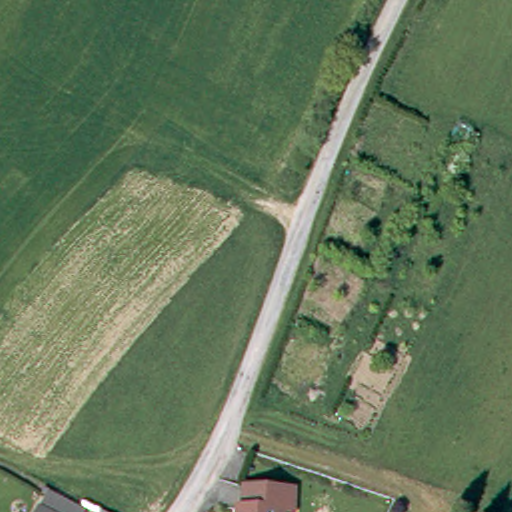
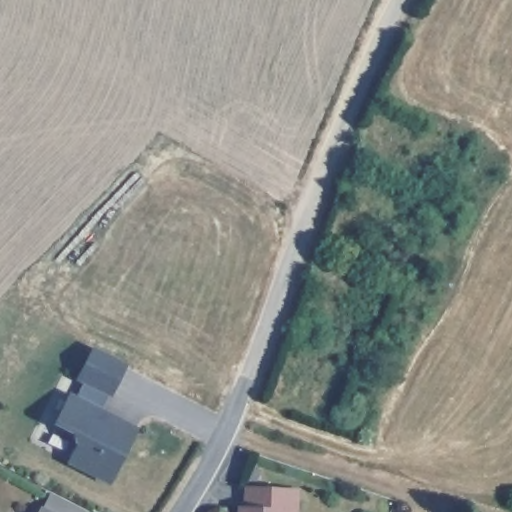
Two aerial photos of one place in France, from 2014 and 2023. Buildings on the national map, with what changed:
new [(128,365),(110,397),(107,396),(101,407),(138,427),(110,485),(66,462),(75,442),(70,433),(53,425),(69,391),(77,395),(83,383),(75,379),(93,345),(128,365)]
unchanged [(288,510),(287,512),(243,512),(243,506),(249,506),(251,485),(301,488),(299,510),(288,510)]

